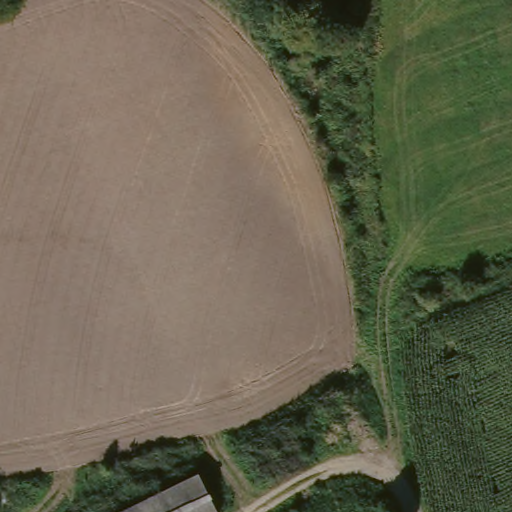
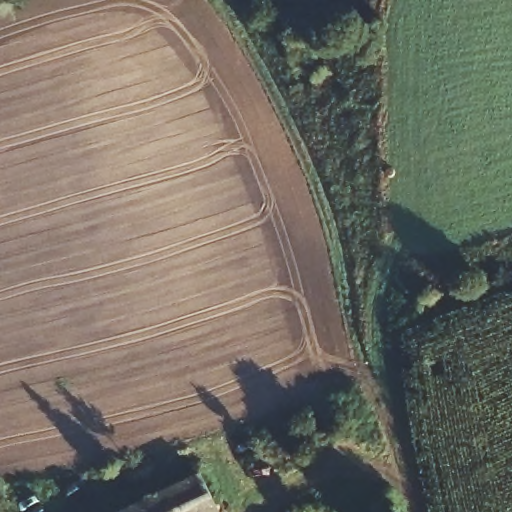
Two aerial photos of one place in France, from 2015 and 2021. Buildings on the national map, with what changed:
unchanged [(211,512),(114,512),(196,477),(211,512)]

